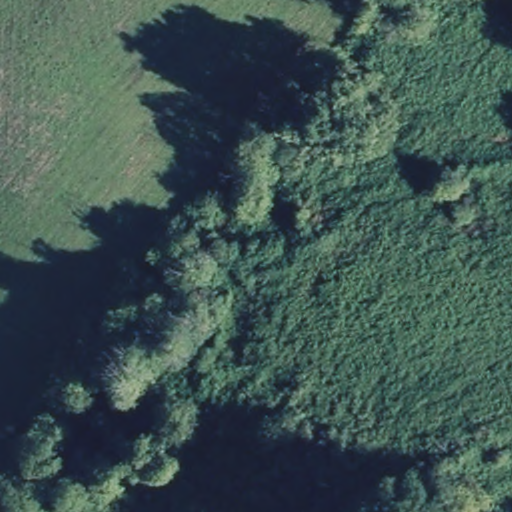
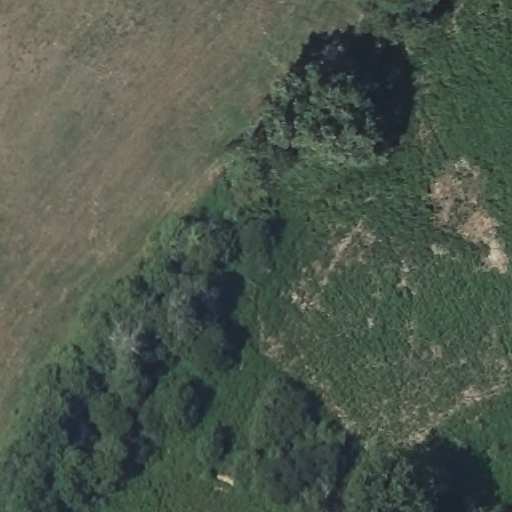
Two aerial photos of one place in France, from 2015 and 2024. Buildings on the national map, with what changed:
[]

